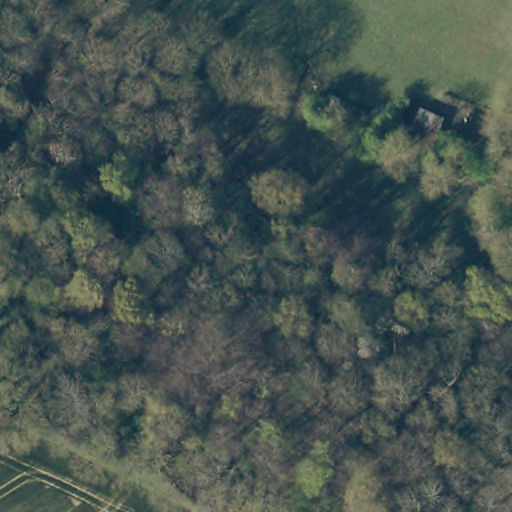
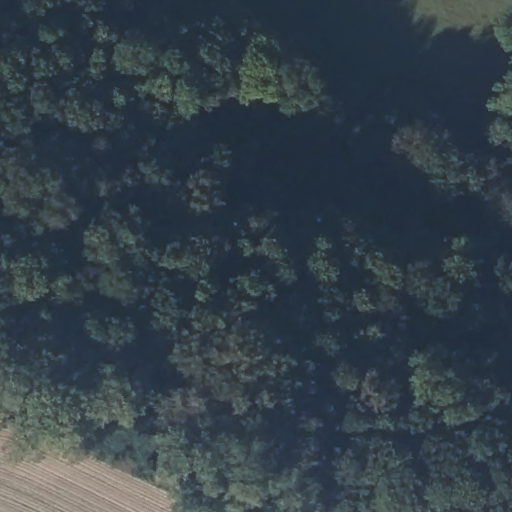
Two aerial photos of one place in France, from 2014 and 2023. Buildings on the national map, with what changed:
unchanged [(447,116),(433,158),(402,146),(417,107),(447,116)]

